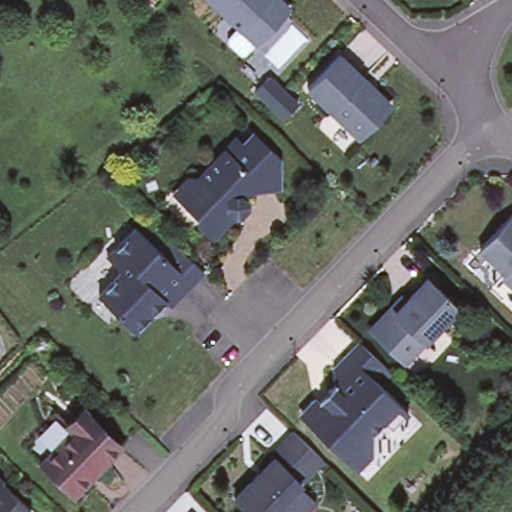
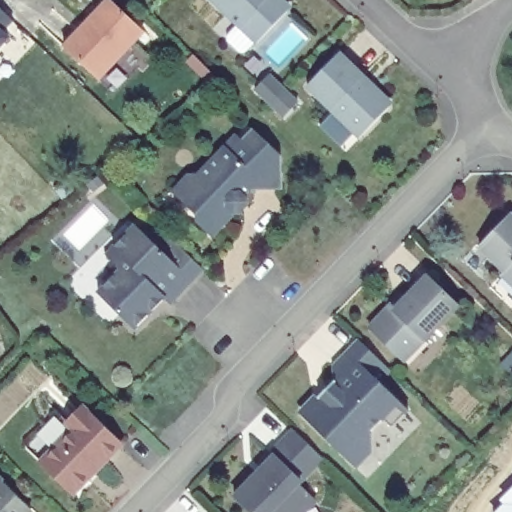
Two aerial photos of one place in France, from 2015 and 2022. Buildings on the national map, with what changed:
new [(62,45),(107,0),(113,0),(145,34),(100,80),(62,45)]
unchanged [(288,15),(258,46),(228,17),(210,0),(280,0),(288,8),(288,15)]
new [(15,20),(2,32),(10,40),(0,50),(0,6),(15,20)]
unchanged [(390,110),(361,140),(308,89),(340,56),(364,79),(376,90),(390,103),(390,110)]
new [(285,125),(270,111),(256,97),(270,83),(285,97),(299,110),(285,125)]
unchanged [(280,156),(281,187),(252,187),(245,196),(247,203),(247,210),(240,216),(231,215),(213,236),(198,222),(202,217),(188,204),(200,192),(200,172),(235,138),(240,142),(252,131),(280,156)]
unchanged [(507,273),(480,247),(512,215),(512,284),(504,276),(507,273)]
unchanged [(167,250),(160,242),(166,235),(173,243),(203,272),(171,306),(162,297),(152,308),(155,311),(137,330),(120,315),(95,289),(115,266),(102,254),(128,225),(160,256),(167,250)]
unchanged [(407,360),(371,326),(392,306),(402,296),(406,300),(428,277),(459,305),(407,360)]
unchanged [(391,373),(387,378),(380,372),(375,378),(408,412),(393,427),(386,421),(375,431),(373,458),(359,471),(304,420),(303,412),(312,402),(317,402),(323,406),(330,398),(330,392),(336,385),(333,381),(334,370),(360,343),(385,367),(391,373)]
unchanged [(77,491),(73,487),(43,458),(74,425),(70,421),(84,406),(121,442),(107,456),(104,453),(95,463),(99,468),(77,491)]
unchanged [(294,485),(311,502),(302,512),(248,512),(232,497),(253,475),(256,475),(272,458),(269,454),(291,430),(320,457),(294,485)]
unchanged [(24,512),(0,512),(0,485),(26,510),(24,512)]
new [(500,500),(512,488),(512,512),(495,512),(503,505),(500,500)]

